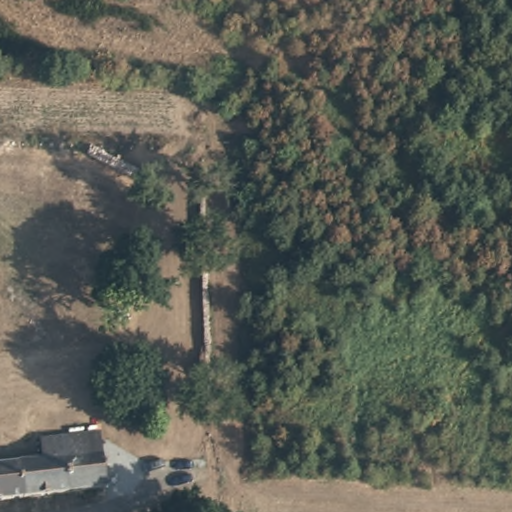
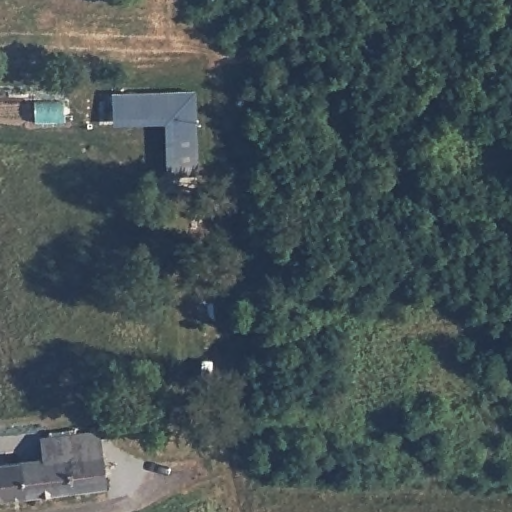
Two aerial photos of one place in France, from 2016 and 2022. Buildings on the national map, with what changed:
new [(196,91),(200,177),(166,178),(163,123),(114,125),(114,93),(196,91)]
unchanged [(105,488),(21,498),(0,500),(0,464),(45,458),(45,456),(43,434),(102,430),(103,453),(105,488)]

